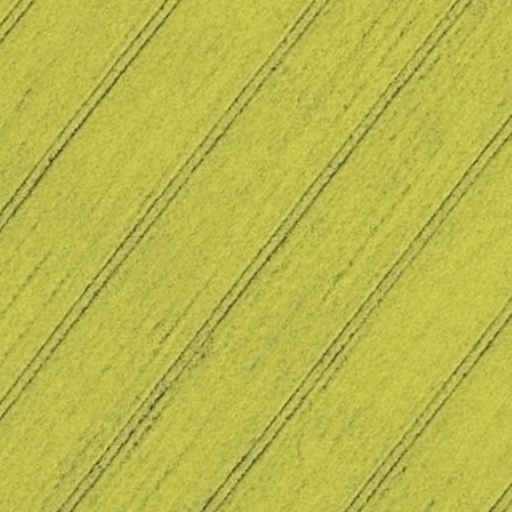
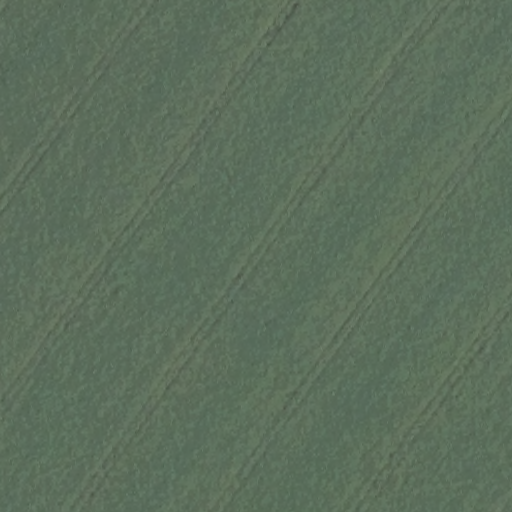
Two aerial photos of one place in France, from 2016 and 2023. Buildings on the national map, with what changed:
[]

